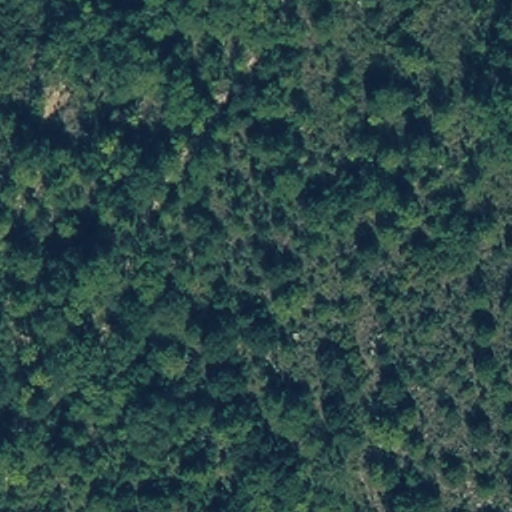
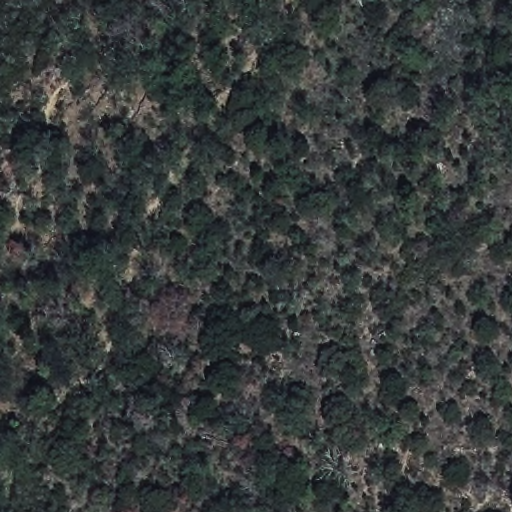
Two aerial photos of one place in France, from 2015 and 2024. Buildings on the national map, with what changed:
[]

